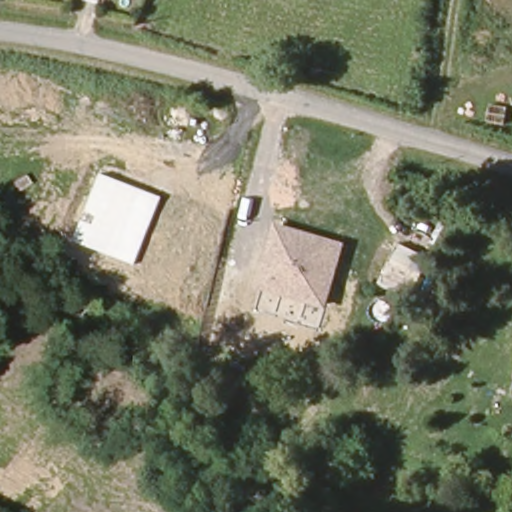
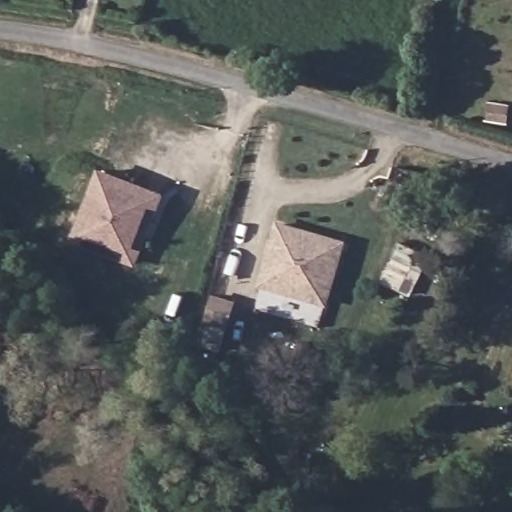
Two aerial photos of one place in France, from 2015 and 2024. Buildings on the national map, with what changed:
new [(139,267),(71,242),(100,168),(167,195),(139,267)]
unchanged [(278,223),(344,240),(325,300),(261,283),(278,223)]
unchanged [(388,235),(420,249),(405,289),(368,276),(388,235)]

